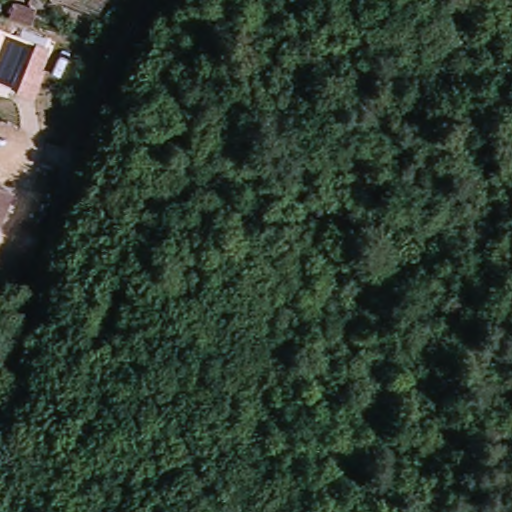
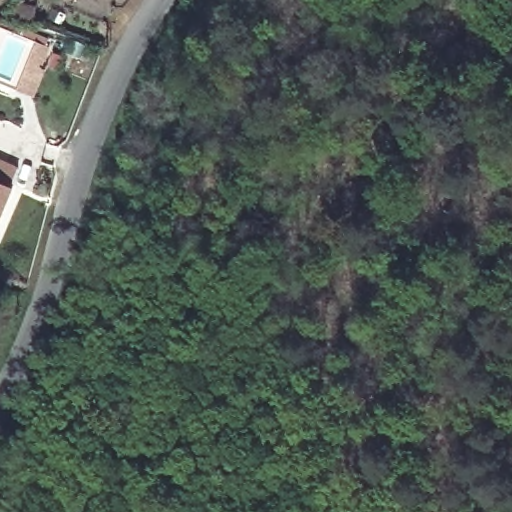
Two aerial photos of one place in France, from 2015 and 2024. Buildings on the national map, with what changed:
unchanged [(26,0),(33,0),(48,5),(43,21),(22,15),(26,0)]
unchanged [(0,85),(0,35),(47,48),(29,98),(0,85)]
unchanged [(3,241),(0,239),(0,178),(24,187),(3,241)]

